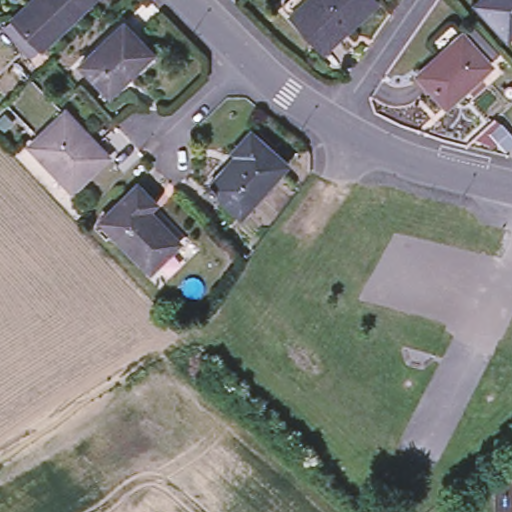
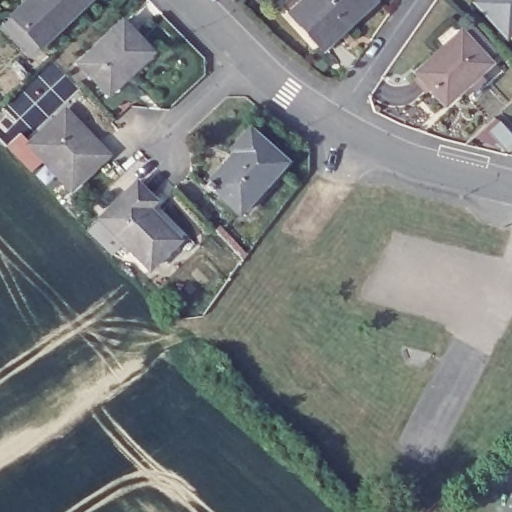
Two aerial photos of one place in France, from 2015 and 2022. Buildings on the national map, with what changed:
unchanged [(28,0),(87,0),(39,46),(10,17),(28,0)]
unchanged [(290,20),(311,0),(372,0),(377,5),(322,55),(290,20)]
unchanged [(479,2),(482,0),(512,0),(512,30),(507,34),(479,2)]
unchanged [(150,54),(126,77),(123,74),(104,92),(77,64),(121,23),(150,54)]
unchanged [(492,64),(447,105),(419,73),(463,33),(492,64)]
unchanged [(105,158),(71,189),(28,145),(64,112),(105,158)]
unchanged [(248,132),(281,165),(234,212),(205,183),(230,157),(227,154),(248,132)]
unchanged [(134,188),(150,205),(143,212),(175,245),(147,272),(99,222),(134,188)]

